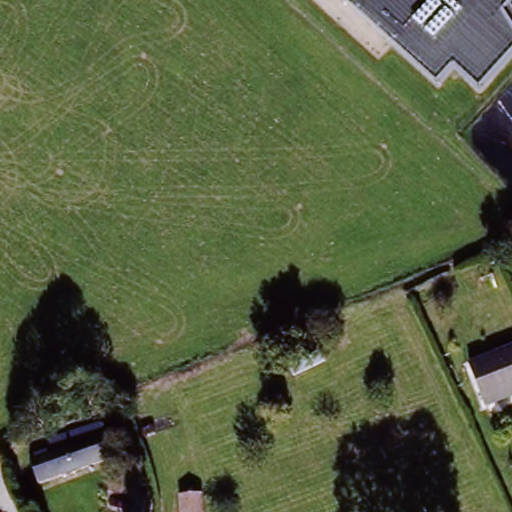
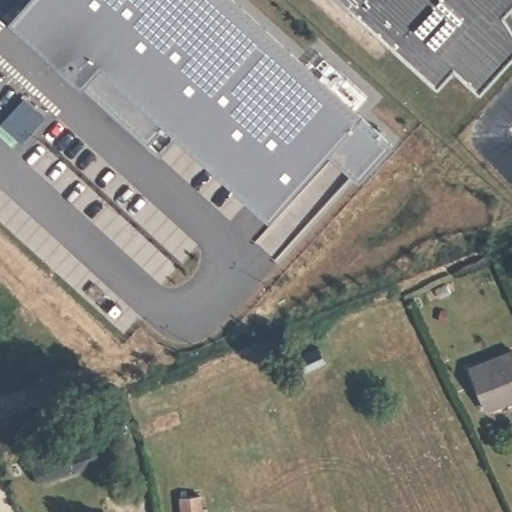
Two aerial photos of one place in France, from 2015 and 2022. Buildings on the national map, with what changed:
new [(395,145),(360,182),(330,152),(268,219),(168,127),(150,147),(82,87),(10,18),(26,0),(233,0),(360,116),(395,145)]
unchanged [(512,0),(512,5),(511,6),(512,8),(512,56),(480,88),(454,64),(438,83),(342,0),(512,0)]
unchanged [(512,355),(512,404),(492,413),(473,371),(512,355)]
unchanged [(37,462),(105,436),(112,454),(43,480),(37,462)]
unchanged [(178,499),(195,499),(195,512),(178,512),(178,499)]

